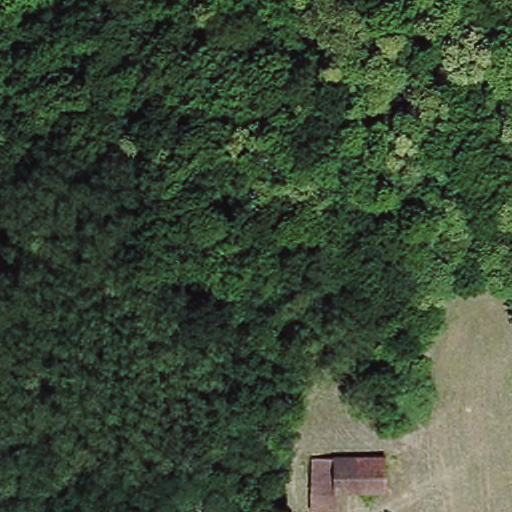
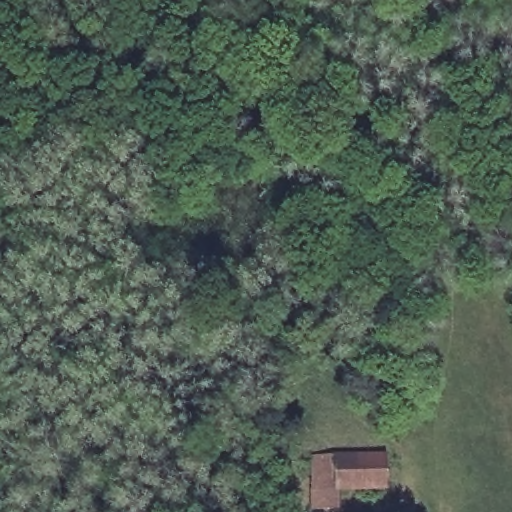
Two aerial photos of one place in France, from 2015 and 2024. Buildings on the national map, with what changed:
unchanged [(343,490),(342,512),(324,512),(315,512),(317,453),(388,456),(389,489),(343,490)]

